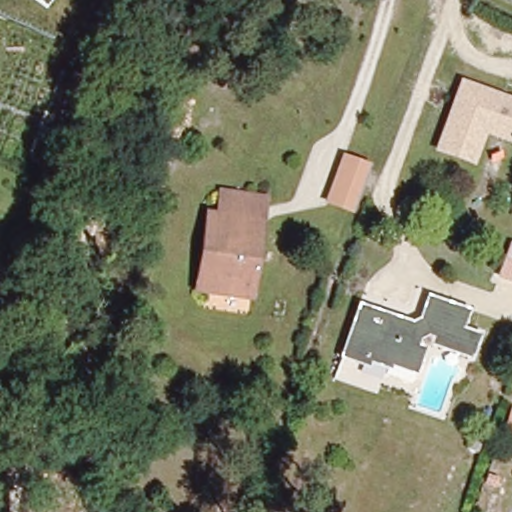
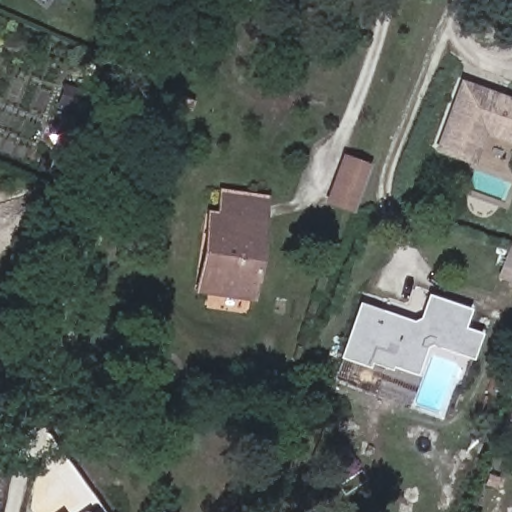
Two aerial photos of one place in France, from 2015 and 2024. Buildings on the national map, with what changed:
unchanged [(474,167),(432,151),(458,79),(512,98),(512,144),(486,135),(474,167)]
unchanged [(352,214),(323,202),(341,153),(371,164),(352,214)]
unchanged [(211,212),(224,215),(228,191),(268,197),(252,297),(198,289),(211,212)]
unchanged [(495,277),(507,242),(512,243),(512,283),(495,277)]
unchanged [(427,352),(418,376),(368,356),(365,366),(341,357),(362,303),(416,325),(428,318),(436,297),(474,310),(468,330),(488,337),(480,360),(439,346),(442,338),(436,335),(422,343),(427,352)]

